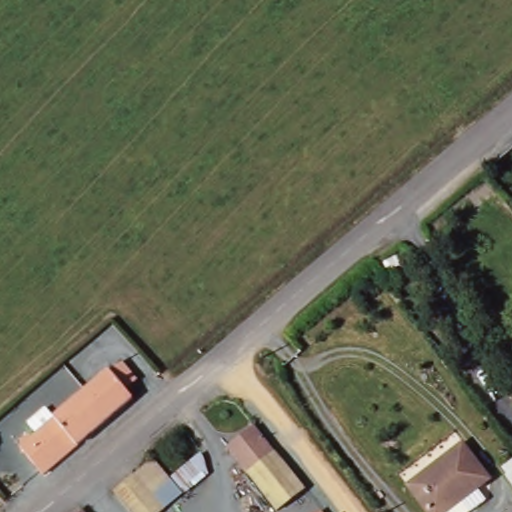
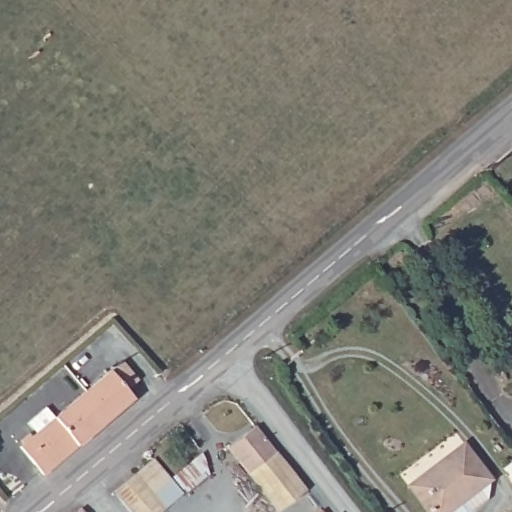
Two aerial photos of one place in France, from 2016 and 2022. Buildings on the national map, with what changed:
unchanged [(117,365),(134,385),(120,395),(126,401),(129,404),(41,480),(16,451),(117,365)]
unchanged [(254,423),(306,489),(278,511),(227,447),(254,423)]
unchanged [(492,480),(463,503),(469,512),(429,512),(409,486),(465,444),(492,480)]
unchanged [(156,459),(188,499),(170,512),(128,512),(111,492),(156,459)]

